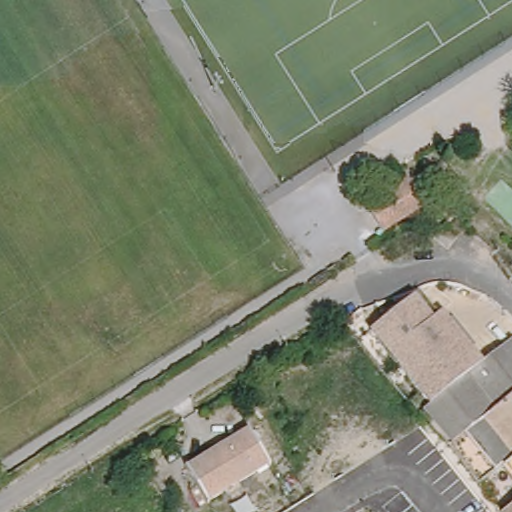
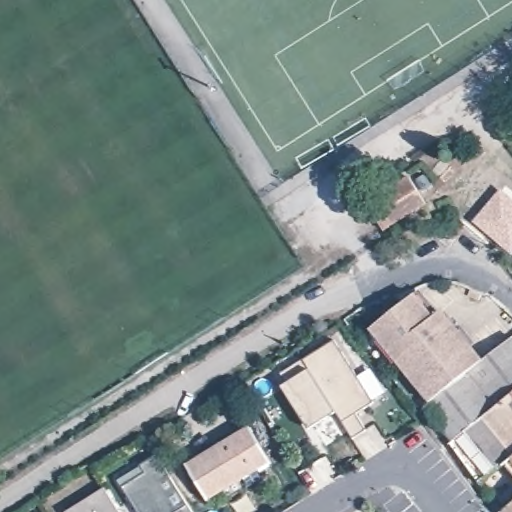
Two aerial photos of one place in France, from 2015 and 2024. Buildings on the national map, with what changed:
unchanged [(428,202),(388,229),(371,202),(412,177),(428,202)]
new [(512,256),(473,223),(501,190),(512,199),(512,256)]
unchanged [(370,332),(414,296),(433,317),(443,310),(483,360),(472,368),(429,403),(370,332)]
unchanged [(472,368),(494,351),(511,336),(512,337),(512,393),(451,442),(424,407),(472,368)]
new [(336,342),(375,405),(357,416),(367,432),(354,441),(337,414),(304,361),(336,342)]
new [(282,374),(304,360),(304,361),(337,414),(315,427),(310,431),(284,387),(288,385),(282,374)]
unchanged [(451,442),(512,393),(512,454),(479,479),(451,442)]
unchanged [(274,462),(212,500),(189,464),(252,427),(274,462)]
unchanged [(479,479),(512,454),(512,502),(500,512),(475,482),(479,479)]
new [(124,487),(119,480),(142,465),(158,456),(193,512),(139,512),(124,487)]
new [(65,512),(105,487),(120,512),(66,512),(65,512)]
unchanged [(512,502),(512,512),(500,512),(512,502)]

